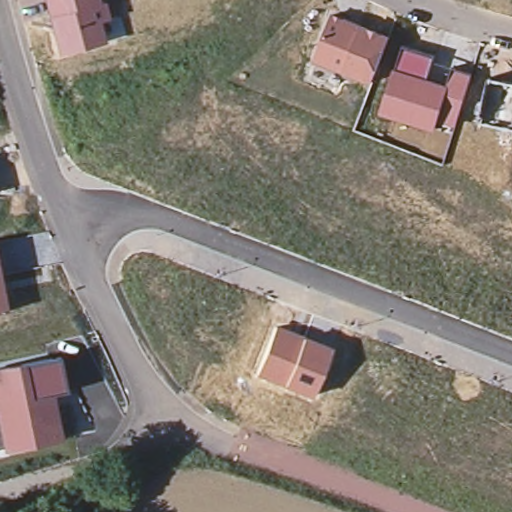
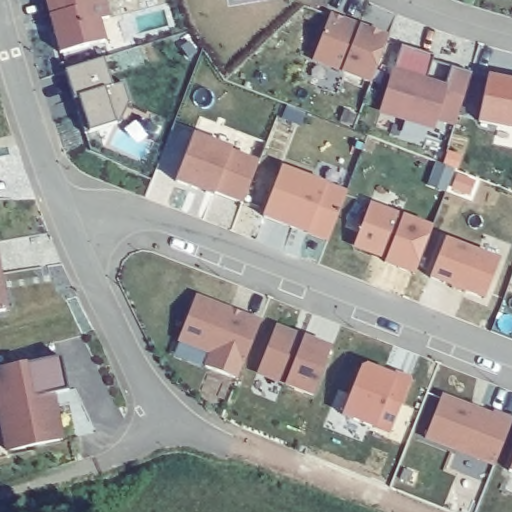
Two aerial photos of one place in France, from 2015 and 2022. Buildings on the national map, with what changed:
unchanged [(108,0),(112,20),(103,21),(107,39),(59,55),(46,0),(99,0),(100,2),(108,0)]
unchanged [(389,35),(371,84),(312,61),(331,11),(389,35)]
unchanged [(435,55),(428,79),(447,84),(452,68),(472,73),(458,127),(439,122),(436,130),(378,115),(403,44),(435,55)]
new [(97,47),(106,75),(115,71),(121,90),(114,109),(76,121),(58,59),(97,47)]
unchanged [(481,122),(491,76),(512,81),(512,129),(481,122)]
unchanged [(234,199),(168,176),(187,132),(249,157),(234,199)]
new [(305,235),(264,216),(283,168),(326,184),(346,192),(328,243),(305,235)]
new [(383,265),(386,260),(353,247),(369,203),(403,216),(432,227),(413,277),(383,265)]
unchanged [(444,243),(498,263),(486,301),(430,279),(444,243)]
unchanged [(7,313),(0,315),(0,274),(7,313)]
new [(205,365),(209,353),(179,342),(196,297),(259,322),(237,381),(205,365)]
unchanged [(335,346),(316,397),(256,373),(277,324),(335,346)]
unchanged [(62,356),(70,392),(57,395),(66,440),(5,454),(0,432),(0,368),(62,356)]
new [(374,429),(342,417),(361,366),(367,365),(395,376),(396,373),(412,380),(390,435),(374,429)]
new [(494,466),(427,439),(443,395),(512,421),(494,466)]
new [(512,464),(512,470),(510,469),(512,464)]

